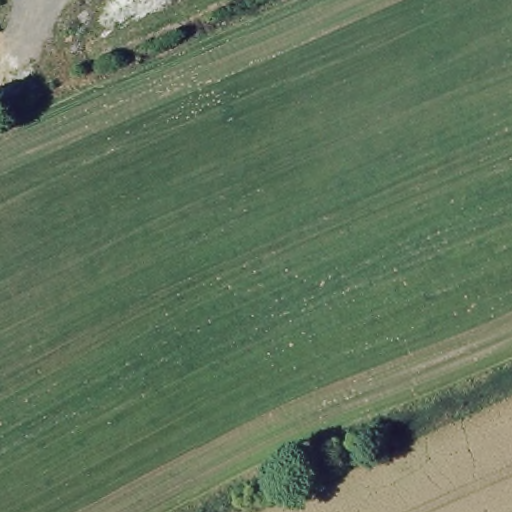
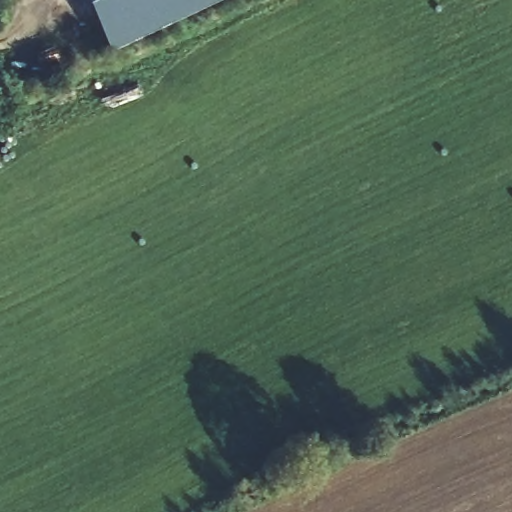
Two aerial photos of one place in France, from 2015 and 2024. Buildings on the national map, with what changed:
new [(110,52),(87,0),(222,0),(110,52)]

